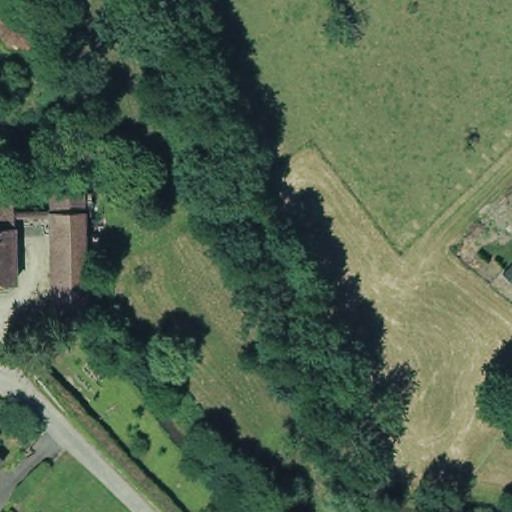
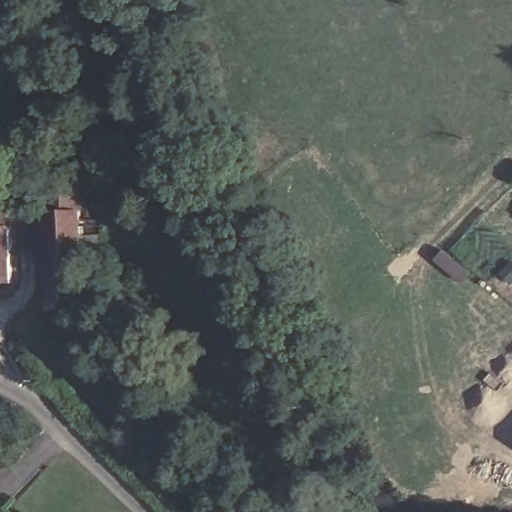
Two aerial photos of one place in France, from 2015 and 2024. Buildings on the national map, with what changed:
unchanged [(86,312),(45,312),(43,182),(82,180),(86,312)]
unchanged [(11,285),(0,286),(0,195),(5,195),(11,285)]

